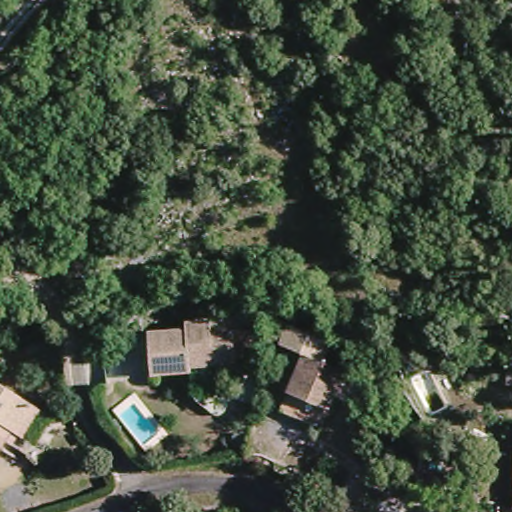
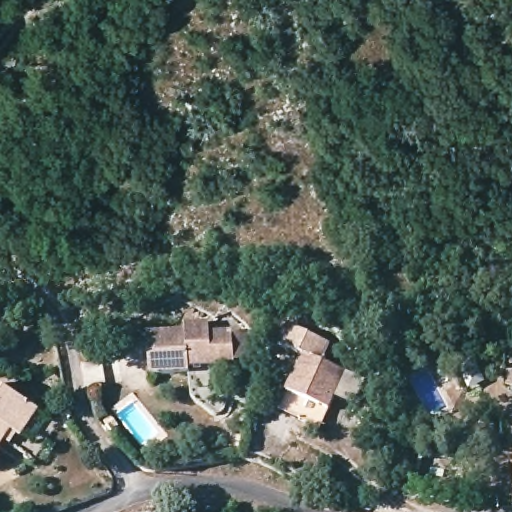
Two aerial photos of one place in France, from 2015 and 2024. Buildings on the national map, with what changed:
unchanged [(300,351),(298,356),(275,347),(285,321),(332,341),(325,361),(300,351)]
unchanged [(207,325),(207,336),(233,337),(232,370),(186,366),(186,375),(146,372),(148,332),(158,332),(159,322),(207,325)]
unchanged [(325,361),(346,369),(323,427),(278,409),(298,356),(300,351),(325,361)]
unchanged [(22,457),(8,447),(0,443),(0,390),(14,397),(34,408),(47,416),(22,457)]

